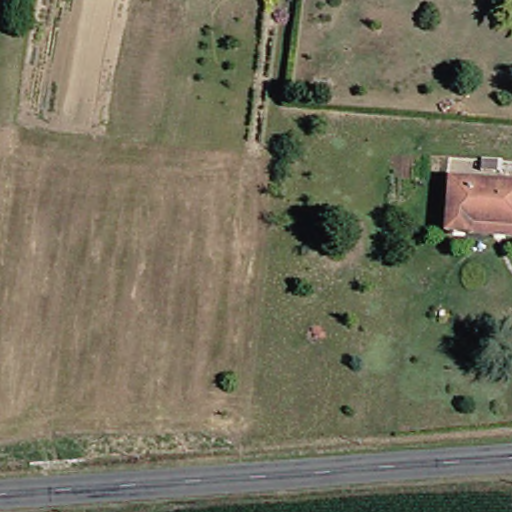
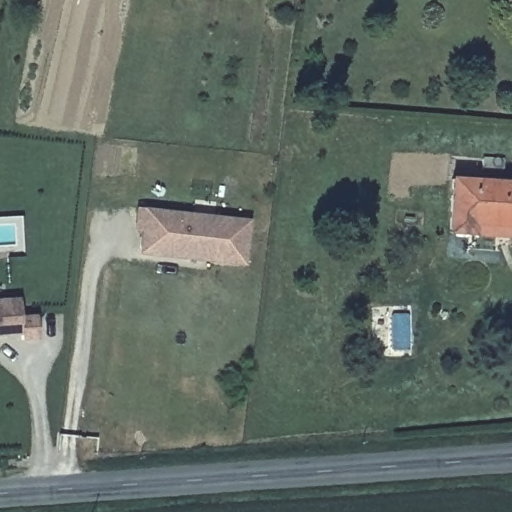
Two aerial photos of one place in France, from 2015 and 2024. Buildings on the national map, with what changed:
unchanged [(457,178),(512,184),(512,235),(481,232),(451,229),(457,178)]
new [(245,270),(138,257),(140,233),(132,232),(135,209),(250,223),(245,270)]
new [(19,332),(0,334),(0,303),(17,302),(19,332)]

